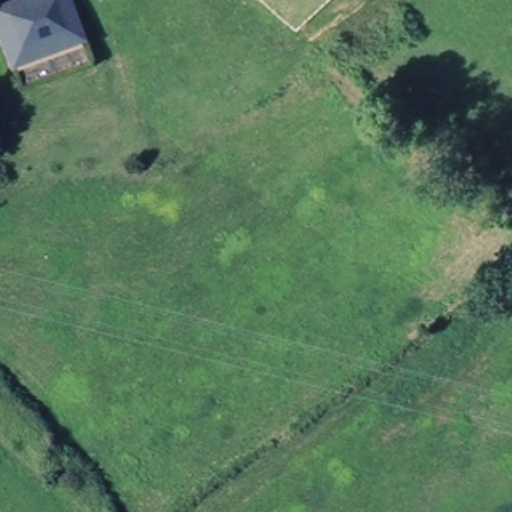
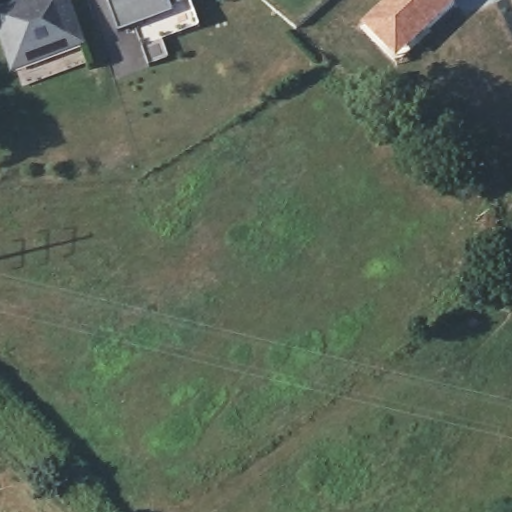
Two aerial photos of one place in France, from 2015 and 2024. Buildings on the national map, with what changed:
unchanged [(0,4),(12,0),(65,0),(78,35),(13,58),(0,21),(0,4)]
new [(108,0),(189,0),(201,27),(143,48),(135,28),(121,35),(108,0)]
new [(389,0),(456,0),(459,2),(397,62),(362,24),(389,0)]
unchanged [(78,35),(85,57),(20,79),(13,58),(78,35)]

